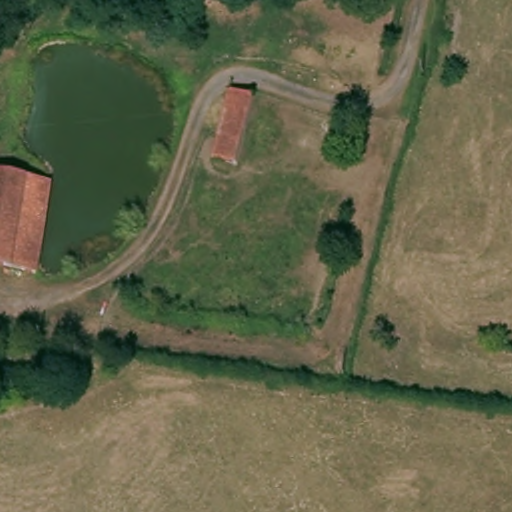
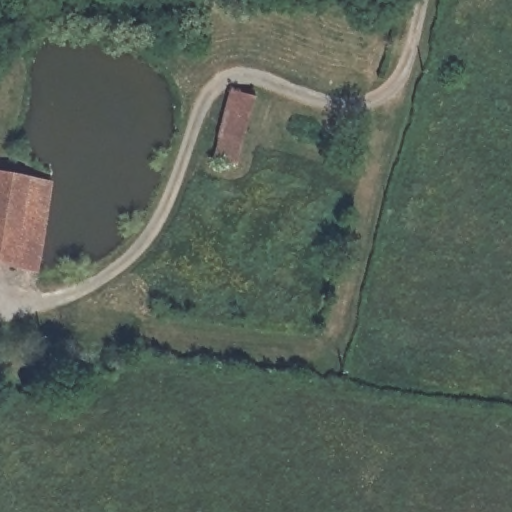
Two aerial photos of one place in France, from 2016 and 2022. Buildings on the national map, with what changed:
unchanged [(214,157),(231,89),(255,95),(247,129),(272,133),(262,170),(214,157)]
unchanged [(38,271),(0,263),(0,174),(52,181),(38,271)]

